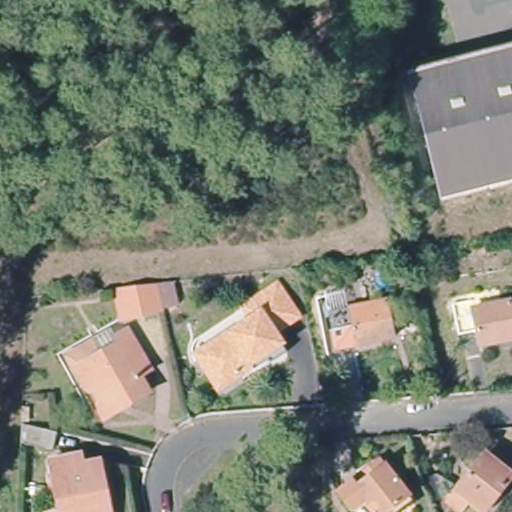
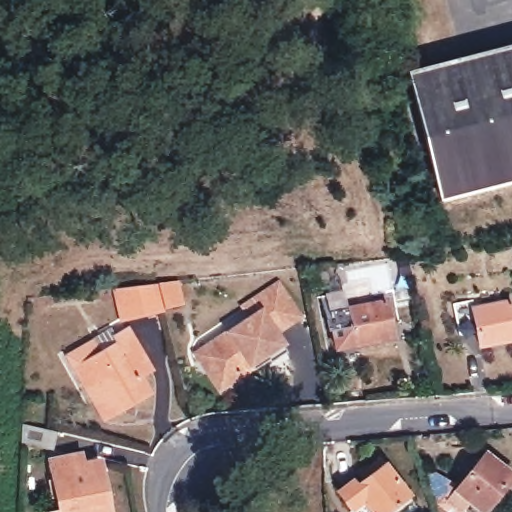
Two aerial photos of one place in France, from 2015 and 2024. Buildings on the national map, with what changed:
unchanged [(409,81),(512,53),(512,186),(441,205),(409,81)]
unchanged [(201,350),(209,346),(256,315),(249,303),(281,282),(294,302),(295,305),(281,314),(271,320),(285,341),(268,351),(266,349),(252,358),(255,363),(230,378),(222,383),(201,350)]
unchanged [(111,290),(153,287),(170,285),(175,309),(160,311),(162,317),(116,324),(111,290)]
unchanged [(482,328),(457,333),(451,301),(475,296),(476,303),(512,297),(512,336),(486,341),(482,328)]
unchanged [(356,348),(350,309),(390,303),(397,340),(356,348)]
unchanged [(100,417),(74,370),(115,350),(110,339),(125,332),(134,348),(147,372),(137,378),(145,392),(100,417)]
unchanged [(59,463),(25,457),(26,434),(64,443),(59,463)]
unchanged [(475,497),(465,508),(450,494),(487,450),(512,469),(512,478),(488,507),(475,497)]
unchanged [(415,494),(391,512),(360,512),(343,490),(356,479),(363,488),(375,480),(369,472),(385,458),(390,466),(393,464),(415,494)]
unchanged [(81,463),(85,479),(105,476),(114,512),(61,512),(60,507),(55,486),(50,470),(81,463)]

